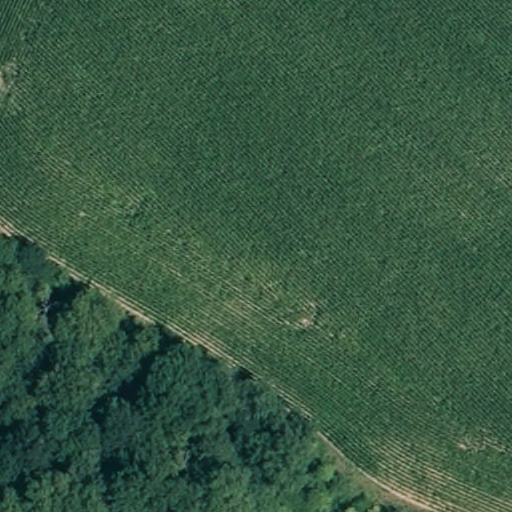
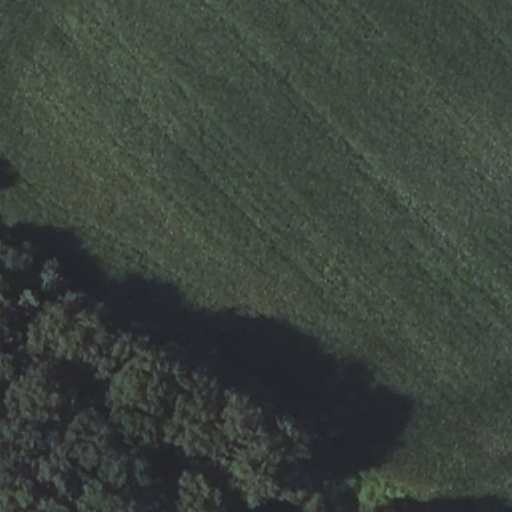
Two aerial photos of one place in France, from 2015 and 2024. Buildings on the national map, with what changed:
[]

